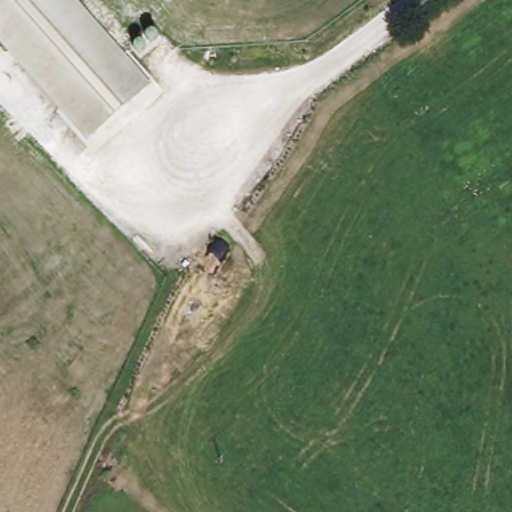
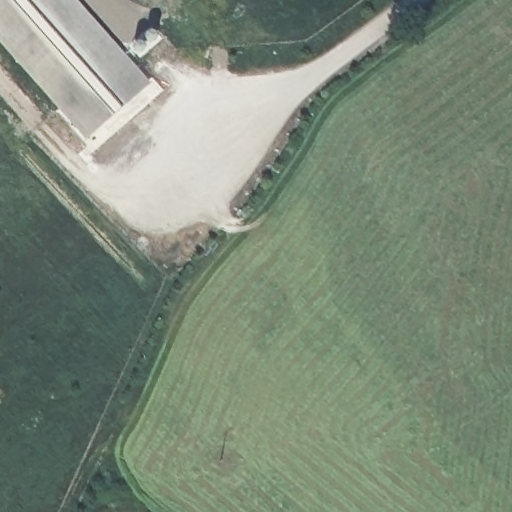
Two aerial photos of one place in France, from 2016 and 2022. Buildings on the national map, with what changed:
unchanged [(92,141),(0,39),(0,0),(81,0),(156,82),(92,141)]

